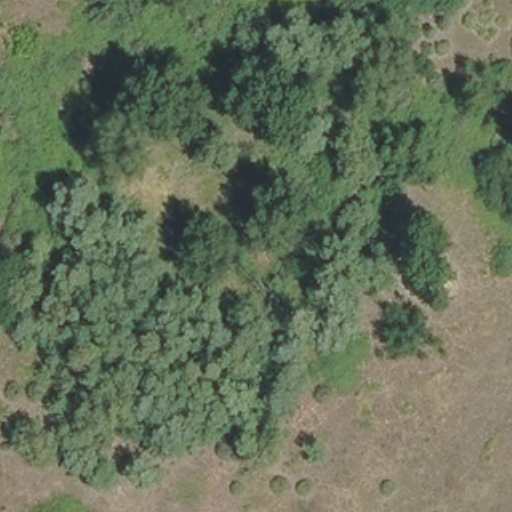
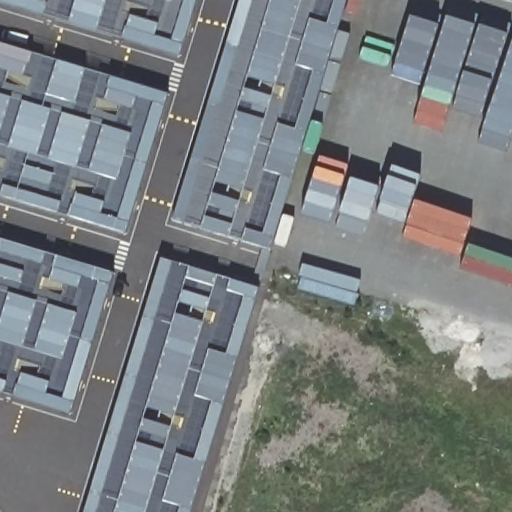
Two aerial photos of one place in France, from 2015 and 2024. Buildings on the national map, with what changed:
new [(0,2),(0,0),(198,0),(181,58),(0,2)]
new [(175,223),(242,0),(347,0),(271,252),(175,223)]
new [(127,237),(0,198),(0,45),(169,96),(127,237)]
new [(72,415),(0,393),(0,241),(114,276),(72,415)]
new [(192,512),(86,512),(162,261),(260,291),(192,512)]

